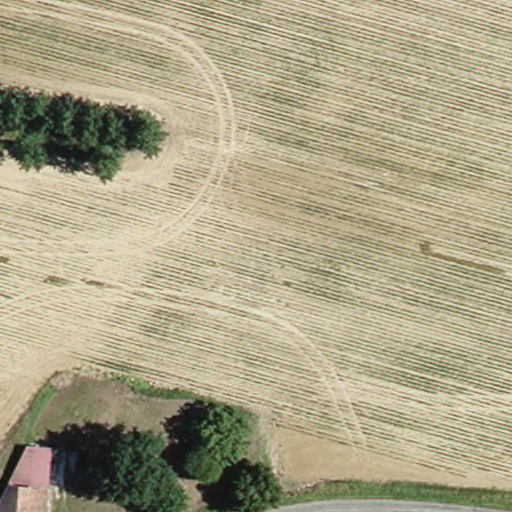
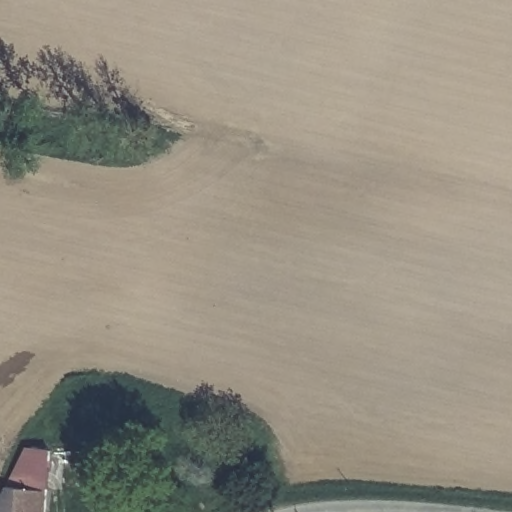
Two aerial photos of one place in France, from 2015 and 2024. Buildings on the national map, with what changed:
unchanged [(3,482),(22,448),(78,452),(75,490),(42,487),(3,482)]
unchanged [(40,512),(0,512),(0,491),(3,482),(42,487),(40,512)]

